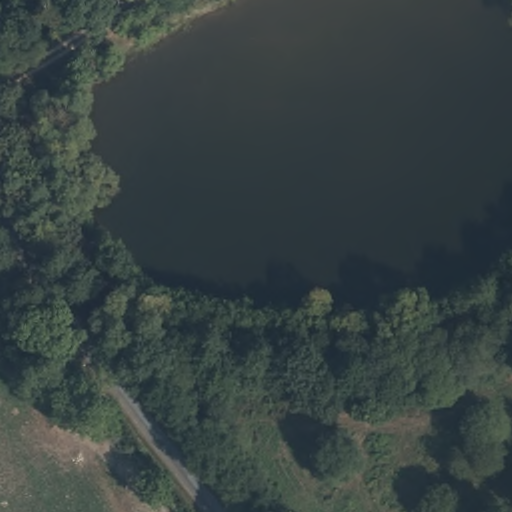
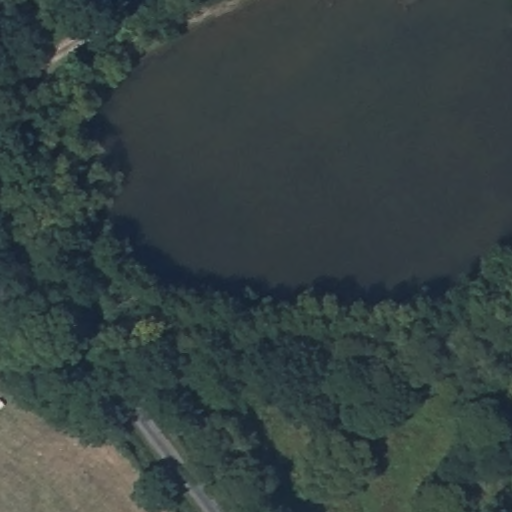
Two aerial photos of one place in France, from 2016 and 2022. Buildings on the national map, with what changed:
[]

